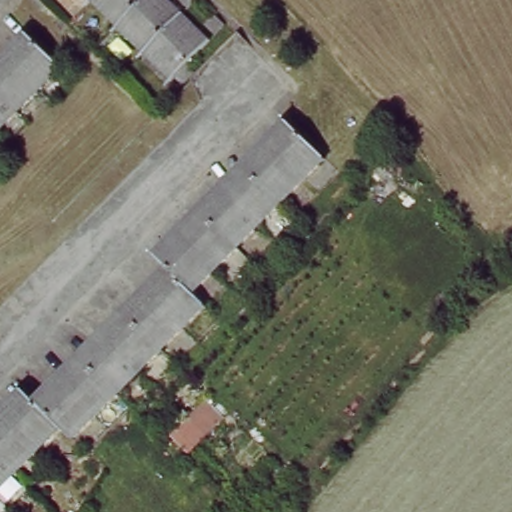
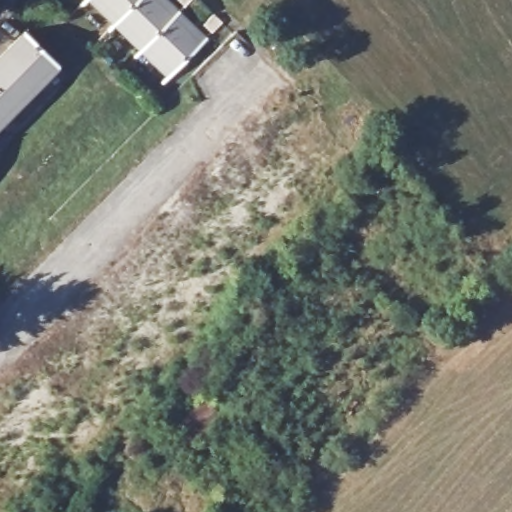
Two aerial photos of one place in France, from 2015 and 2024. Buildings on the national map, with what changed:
unchanged [(201,49),(166,84),(83,0),(151,0),(201,49)]
unchanged [(172,6),(178,0),(184,0),(191,6),(181,16),(172,6)]
unchanged [(199,34),(208,25),(216,33),(207,42),(199,34)]
unchanged [(28,35),(62,69),(0,131),(0,63),(28,35)]
demolished [(285,120),(322,154),(192,289),(207,304),(195,316),(144,369),(93,422),(73,442),(57,425),(0,485),(0,416),(23,393),(36,404),(167,266),(156,256),(285,120)]

